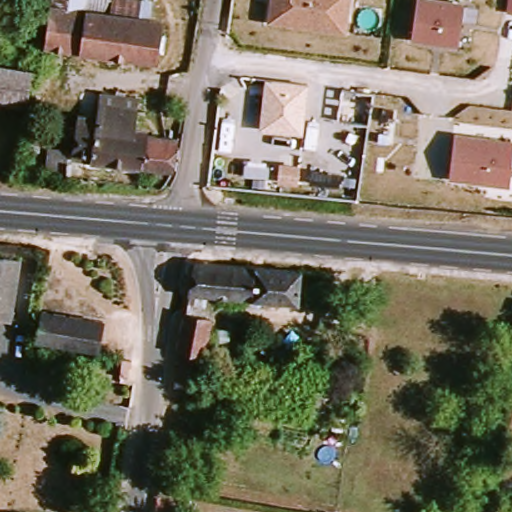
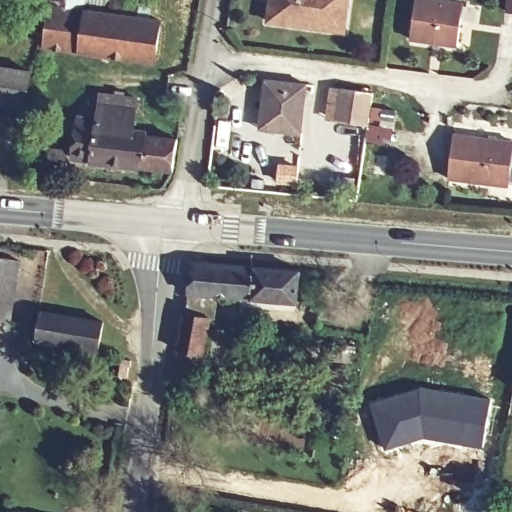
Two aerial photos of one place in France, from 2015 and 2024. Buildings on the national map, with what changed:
unchanged [(86,0),(85,13),(52,11),(54,0),(86,0)]
unchanged [(265,25),(268,0),(348,0),(343,36),(265,25)]
unchanged [(410,40),(416,0),(465,0),(459,46),(410,40)]
unchanged [(506,12),(508,0),(512,0),(512,13),(506,12)]
unchanged [(159,57),(45,50),(52,11),(85,13),(160,18),(159,57)]
unchanged [(18,101),(0,98),(0,66),(21,68),(18,101)]
unchanged [(308,85),(302,136),(260,131),(265,81),(308,85)]
unchanged [(368,126),(336,122),(340,88),(372,92),(368,126)]
unchanged [(175,161),(91,156),(91,150),(80,149),(71,149),(72,109),(85,110),(92,110),(92,101),(131,103),(131,112),(131,128),(178,131),(175,161)]
unchanged [(511,190),(450,181),(456,131),(512,139),(512,181),(511,190)]
unchanged [(66,149),(65,177),(42,175),(43,147),(66,149)]
unchanged [(301,161),(298,186),(276,183),(280,161),(301,161)]
unchanged [(189,257),(297,273),(292,313),(184,297),(189,257)]
unchanged [(0,297),(0,260),(5,261),(0,297)]
unchanged [(98,357),(17,346),(23,309),(114,322),(108,359),(98,357)]
unchanged [(172,357),(175,316),(205,319),(203,342),(217,343),(215,362),(172,357)]
unchanged [(511,390),(512,387),(512,390),(511,390)]
new [(420,388),(491,400),(483,449),(425,437),(385,450),(371,403),(420,388)]

